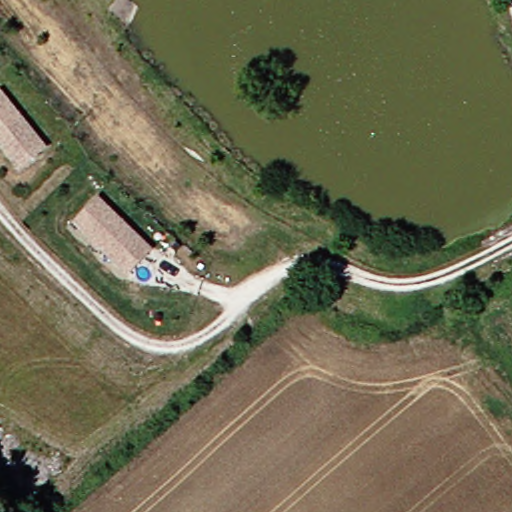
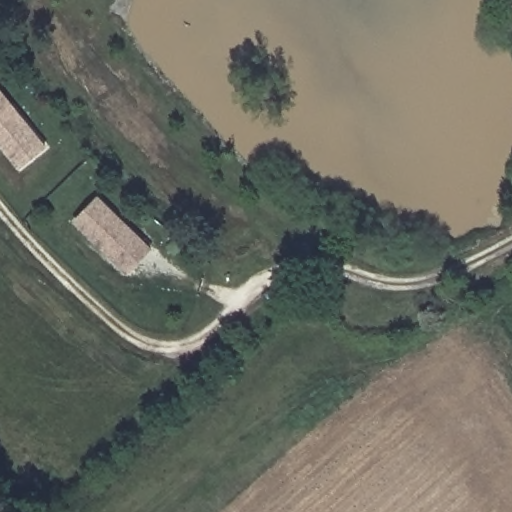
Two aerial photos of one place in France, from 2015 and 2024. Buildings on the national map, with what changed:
unchanged [(15,164),(0,145),(0,95),(8,104),(40,145),(15,164)]
unchanged [(127,269),(112,255),(77,219),(99,196),(135,233),(149,247),(127,269)]

